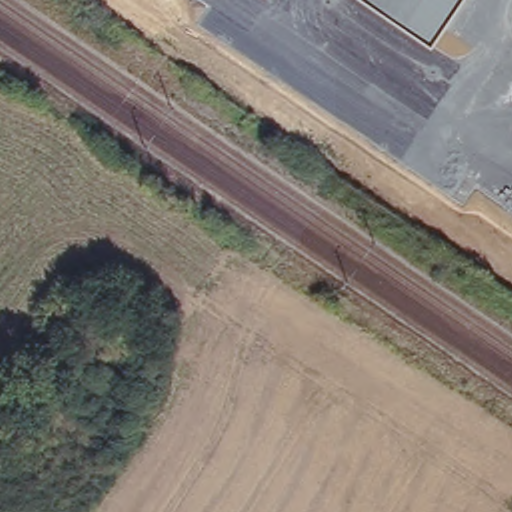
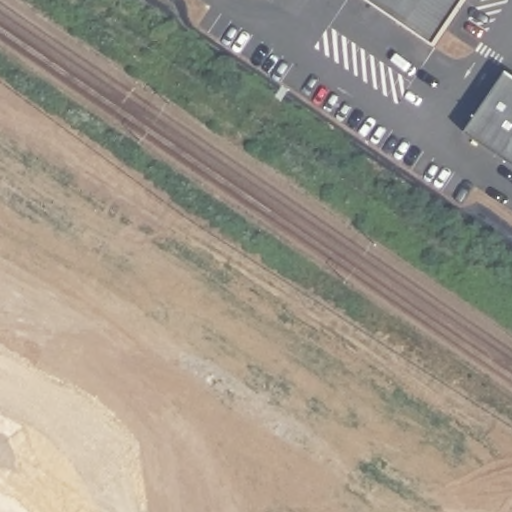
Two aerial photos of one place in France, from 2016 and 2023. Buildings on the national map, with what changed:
unchanged [(367,0),(463,0),(432,45),(367,0)]
new [(512,65),(512,160),(468,131),(512,65)]

